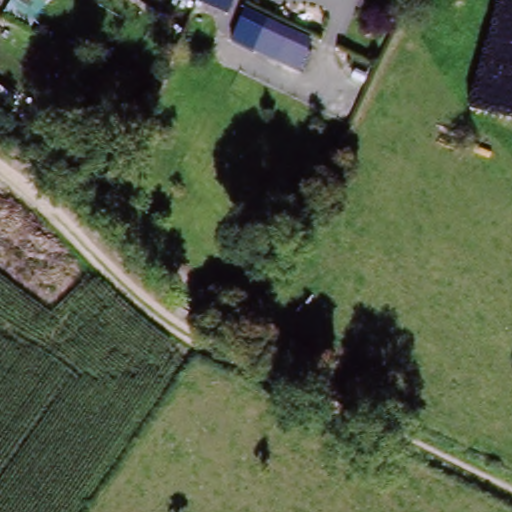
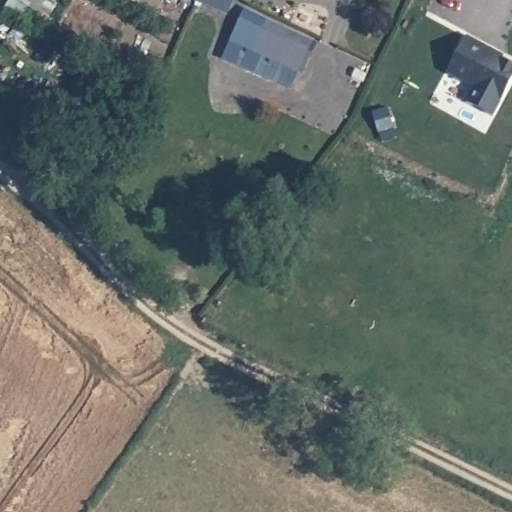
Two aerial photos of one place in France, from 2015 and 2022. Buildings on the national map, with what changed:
unchanged [(49,0),(32,27),(4,14),(12,0),(49,0)]
unchanged [(196,5),(198,0),(235,0),(228,18),(218,14),(196,5)]
unchanged [(246,1),(314,30),(300,67),(232,38),(246,1)]
new [(474,90),(447,76),(464,39),(479,46),(478,49),(512,65),(512,79),(493,118),(466,105),(474,90)]
new [(478,49),(479,46),(501,57),(500,60),(478,49)]

